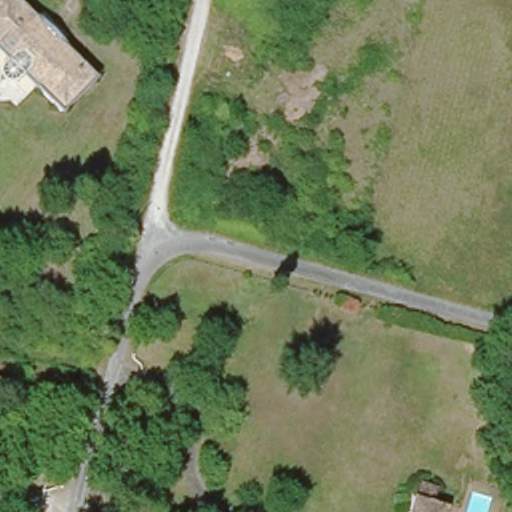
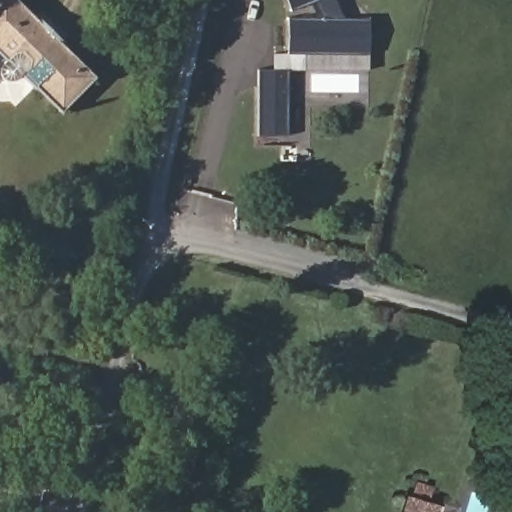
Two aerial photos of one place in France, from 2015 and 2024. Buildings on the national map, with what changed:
unchanged [(94,68),(60,102),(58,104),(0,46),(0,0),(24,0),(72,48),(94,68)]
new [(291,9),(287,0),(316,0),(291,9)]
new [(288,53),(289,18),(370,19),(370,54),(288,53)]
new [(288,136),(257,136),(258,69),(287,69),(288,136)]
unchanged [(411,512),(418,490),(421,491),(425,478),(441,483),(436,495),(452,500),(449,512),(411,512)]

